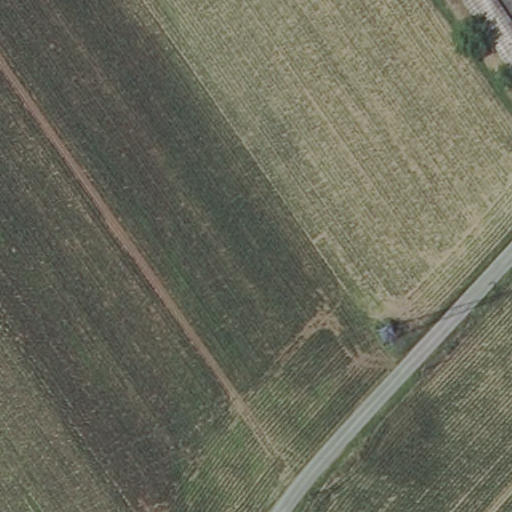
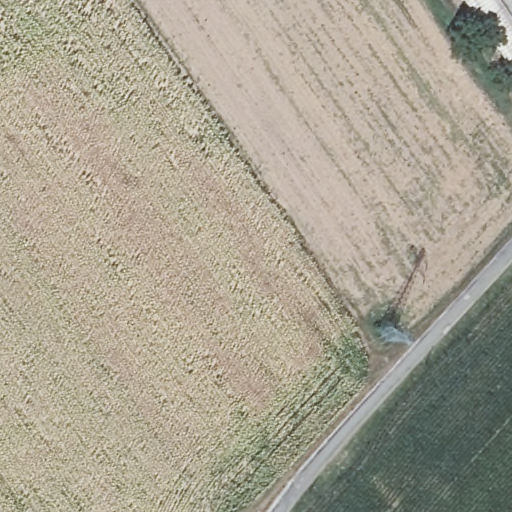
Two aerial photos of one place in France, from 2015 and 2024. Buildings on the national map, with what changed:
unchanged [(461,0),(512,0),(512,62),(505,66),(461,0)]

